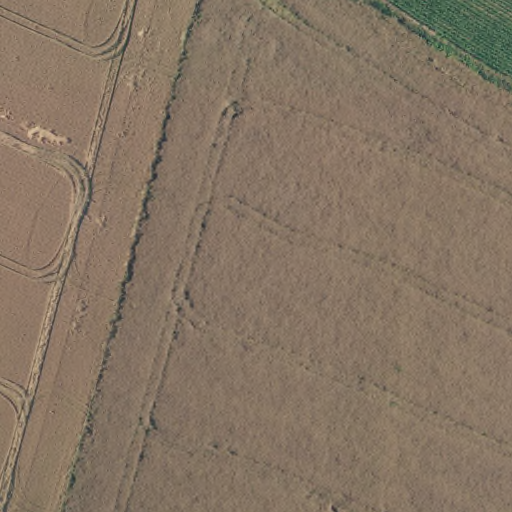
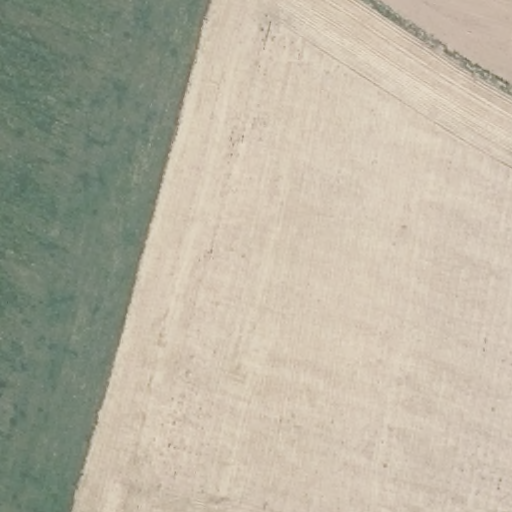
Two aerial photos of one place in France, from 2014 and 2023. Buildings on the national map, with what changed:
[]

